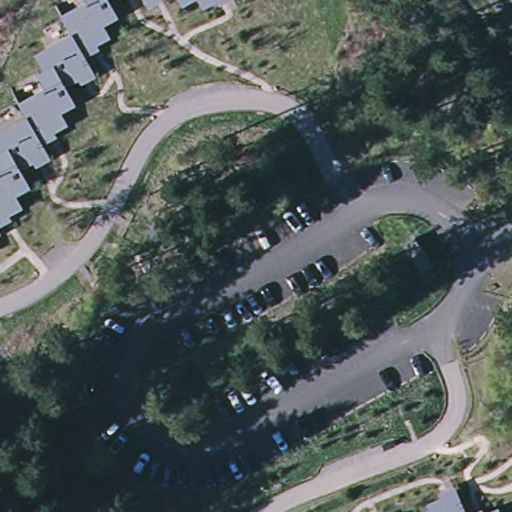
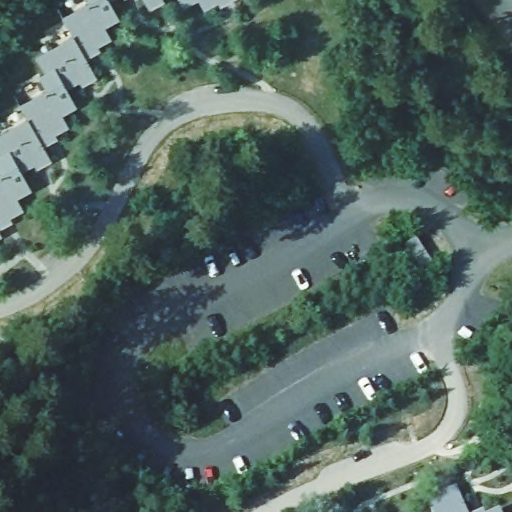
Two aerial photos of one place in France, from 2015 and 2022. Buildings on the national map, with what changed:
unchanged [(3,173),(0,168),(0,135),(31,119),(24,105),(50,90),(42,75),(48,72),(38,55),(74,36),(64,17),(89,2),(89,0),(109,0),(118,18),(104,24),(111,37),(96,45),(98,50),(84,58),(93,74),(68,87),(77,105),(61,113),(69,124),(55,130),(59,137),(43,145),(51,160),(38,167),(35,161),(19,169),(30,190),(15,198),(21,211),(10,216),(13,221),(0,228),(0,175),(3,173)]
unchanged [(163,1),(145,9),(141,0),(162,0),(163,1)]
unchanged [(182,8),(178,0),(197,0),(182,8)]
unchanged [(202,10),(198,0),(222,0),(202,10)]
unchanged [(4,235),(0,237),(0,228),(4,235)]
unchanged [(443,499),(440,494),(458,486),(469,512),(432,512),(429,505),(443,499)]
unchanged [(502,512),(494,512),(501,508),(502,512)]
unchanged [(487,512),(481,512),(486,510),(487,512)]

